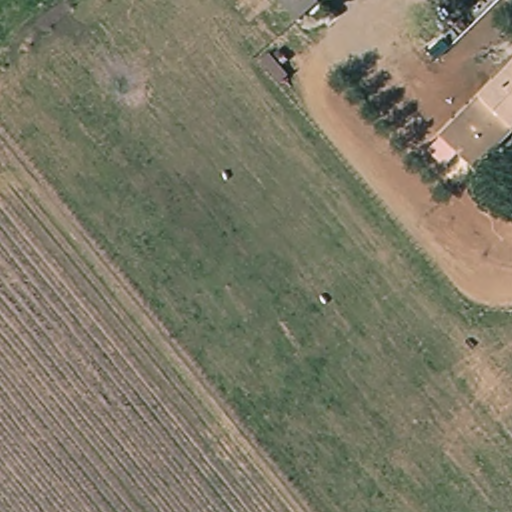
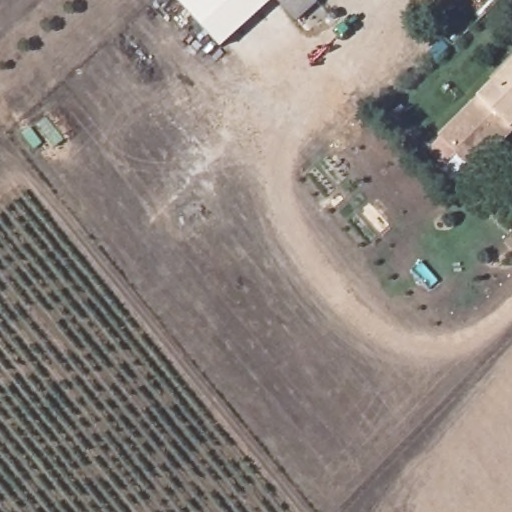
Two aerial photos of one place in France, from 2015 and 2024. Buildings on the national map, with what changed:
new [(222,49),(178,0),(274,0),(275,1),(222,49)]
unchanged [(290,20),(289,18),(274,0),(309,0),(312,3),(290,20)]
unchanged [(473,169),(445,139),(445,137),(512,66),(512,131),(503,140),(473,169)]

